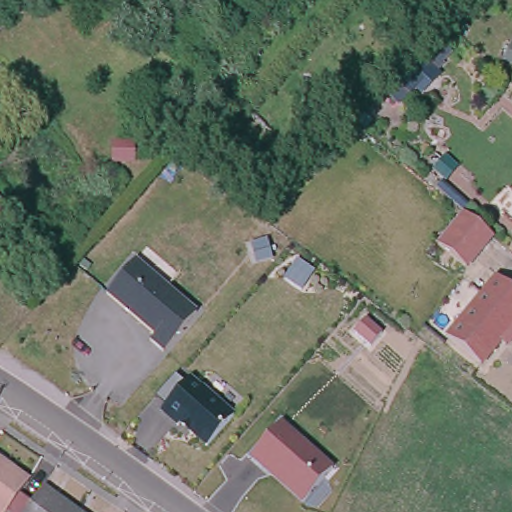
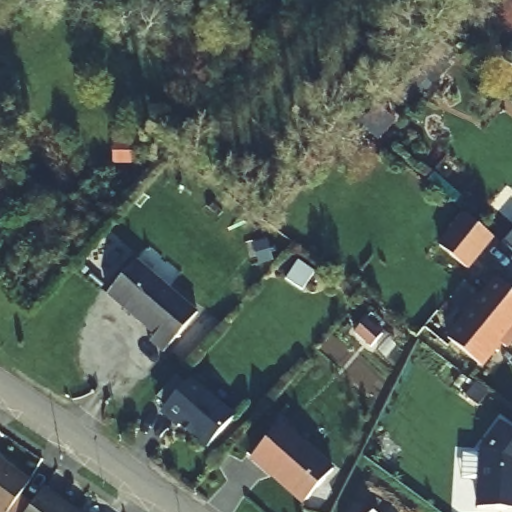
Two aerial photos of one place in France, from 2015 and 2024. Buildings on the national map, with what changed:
unchanged [(0,219),(0,211),(4,216),(0,219)]
unchanged [(492,238),(467,269),(440,247),(465,216),(492,238)]
unchanged [(179,276),(167,292),(195,311),(160,355),(142,344),(147,334),(100,295),(142,248),(179,276)]
unchanged [(512,293),(512,341),(505,349),(500,344),(480,367),(447,340),(497,280),(512,293)]
unchanged [(237,411),(206,448),(162,413),(168,406),(155,397),(174,374),(184,383),(191,373),(237,411)]
unchanged [(334,465),(302,503),(250,458),(281,420),(334,465)]
new [(475,508),(477,452),(499,422),(512,431),(512,510),(475,508)]
unchanged [(11,512),(0,512),(0,465),(30,487),(11,512)]
unchanged [(43,489),(76,512),(26,512),(43,489)]

